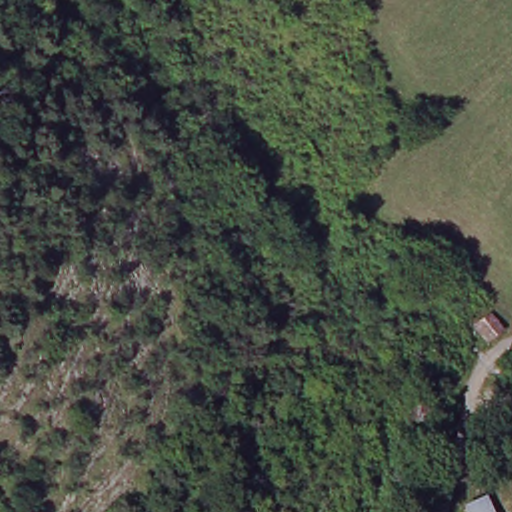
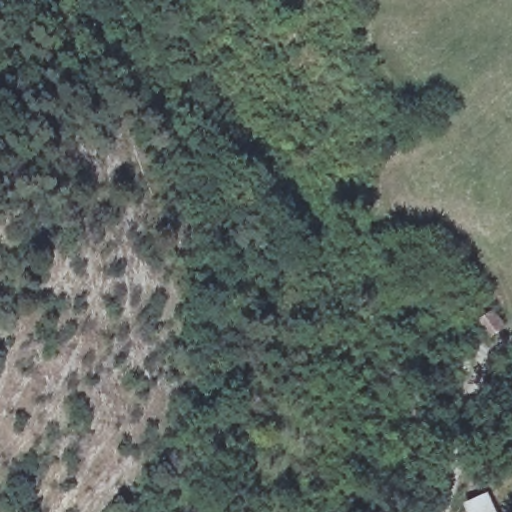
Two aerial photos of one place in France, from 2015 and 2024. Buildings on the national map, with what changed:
unchanged [(502,338),(486,322),(496,311),(512,327),(512,329),(502,338)]
unchanged [(435,436),(419,435),(419,414),(420,414),(435,414),(435,436)]
unchanged [(466,509),(490,492),(503,512),(468,512),(466,509)]

